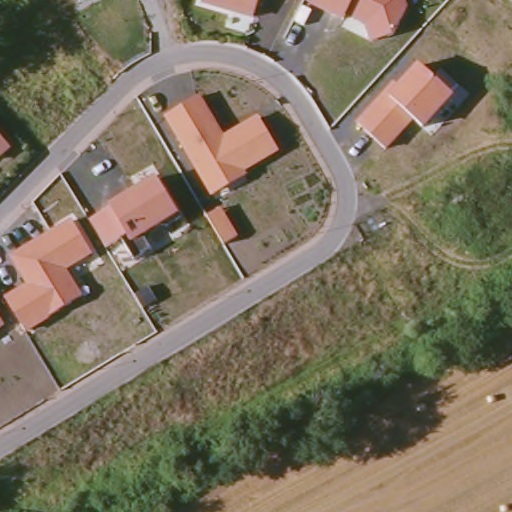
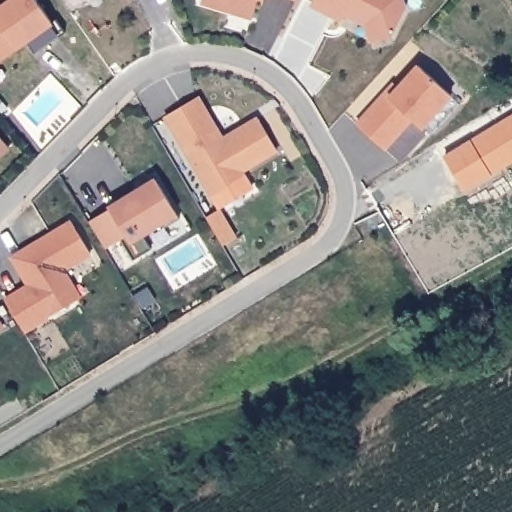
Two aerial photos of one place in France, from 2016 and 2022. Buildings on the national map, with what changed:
new [(30,43),(20,50),(0,64),(0,4),(4,2),(3,0),(37,0),(52,22),(55,19),(65,34),(36,53),(30,43)]
unchanged [(204,0),(266,0),(265,5),(258,4),(253,20),(202,6),(204,0)]
unchanged [(297,2),(292,0),(298,0),(297,2)]
unchanged [(313,0),(406,0),(408,7),(394,38),(370,44),(364,26),(347,15),(344,22),(310,7),(313,0)]
unchanged [(392,83),(397,86),(417,64),(454,97),(424,130),(417,123),(387,150),(357,124),(392,83)]
unchanged [(165,119),(202,97),(226,137),(260,117),(280,153),(247,174),(249,178),(212,199),(165,119)]
new [(465,193),(443,157),(512,115),(512,163),(465,193)]
unchanged [(0,159),(0,134),(12,149),(0,159)]
unchanged [(178,215),(144,237),(150,248),(134,260),(122,239),(107,249),(90,221),(110,206),(155,179),(178,215)]
unchanged [(5,299),(27,285),(11,259),(73,220),(94,256),(68,272),(85,300),(27,334),(5,299)]
new [(145,286),(152,298),(140,306),(132,294),(145,286)]
new [(0,327),(0,315),(5,324),(0,327)]

